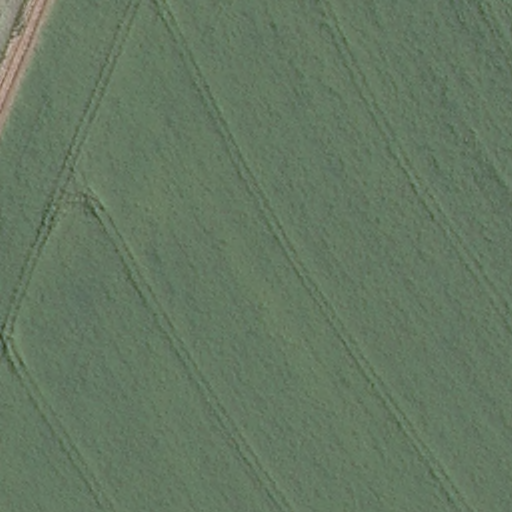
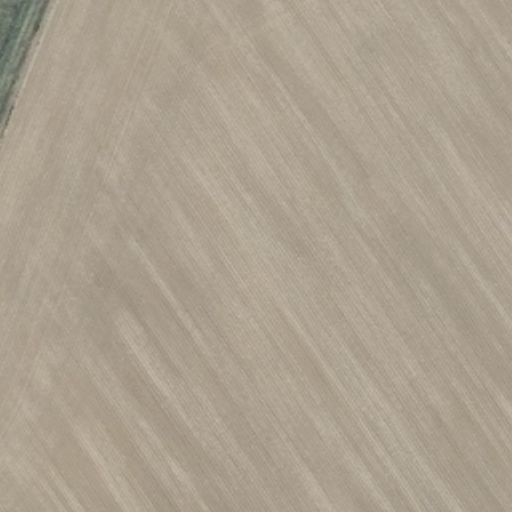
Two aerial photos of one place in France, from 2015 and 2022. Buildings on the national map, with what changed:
[]

